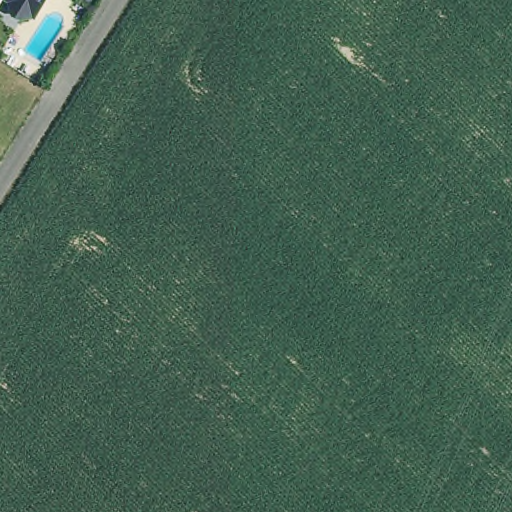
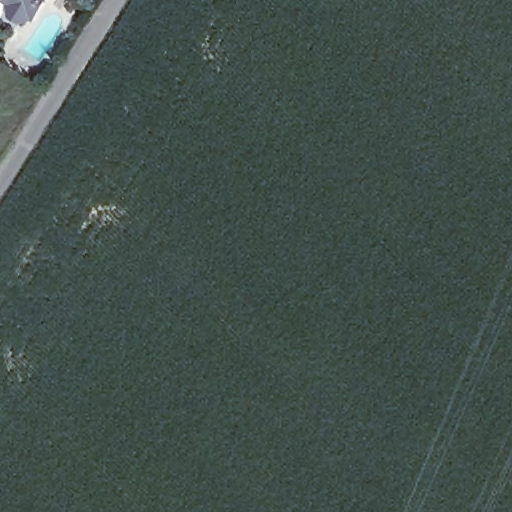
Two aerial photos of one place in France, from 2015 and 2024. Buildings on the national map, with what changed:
unchanged [(38,20),(36,19),(34,21),(25,23),(17,17),(15,9),(16,6),(6,0),(51,0),(43,14),(38,20)]

